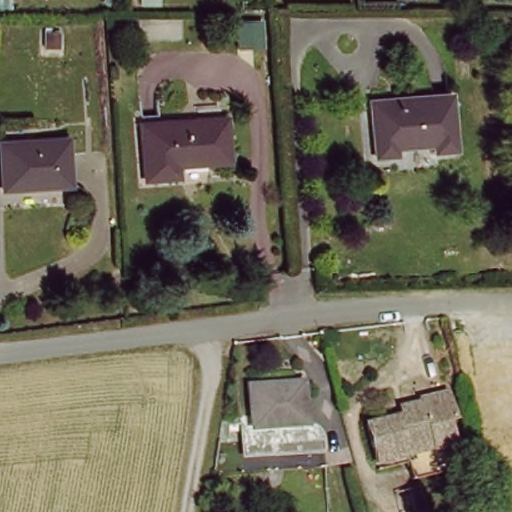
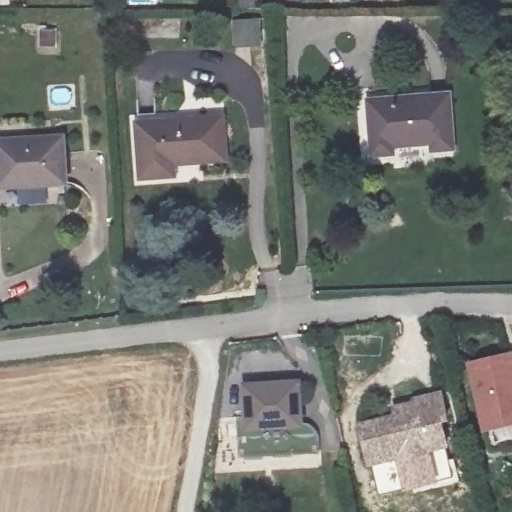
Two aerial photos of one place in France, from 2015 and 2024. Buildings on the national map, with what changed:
unchanged [(371,103),(455,98),(460,154),(439,155),(437,146),(399,149),(400,160),(375,161),(371,103)]
unchanged [(141,117),(228,111),(231,156),(183,159),(184,170),(144,174),(141,117)]
unchanged [(1,184),(0,172),(0,137),(63,131),(68,179),(1,184)]
new [(499,445),(496,430),(490,432),(475,366),(512,357),(512,442),(499,445)]
unchanged [(305,377),(309,419),(316,422),(321,427),(324,432),(326,448),(243,451),(241,423),(254,423),(250,382),(305,377)]
unchanged [(398,417),(396,408),(417,406),(415,397),(441,392),(447,420),(438,422),(445,451),(425,455),(421,440),(394,443),(396,457),(369,462),(360,422),(398,417)]

